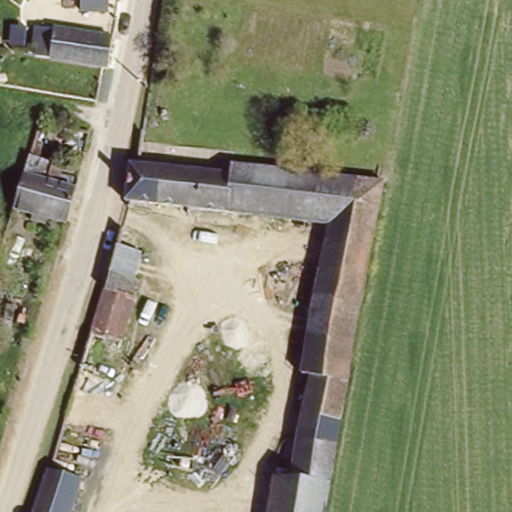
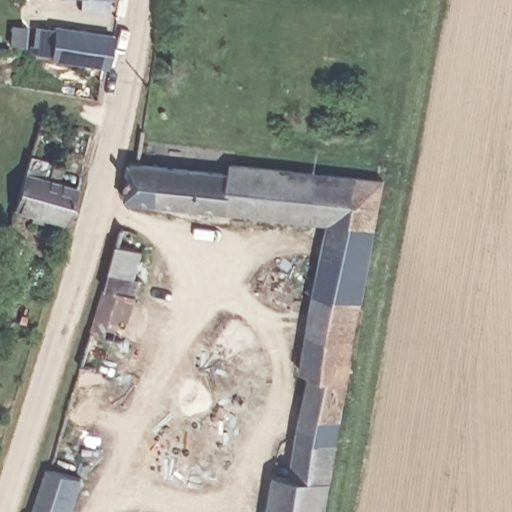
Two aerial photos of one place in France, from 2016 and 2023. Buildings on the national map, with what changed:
unchanged [(92,2),(92,0),(119,0),(119,3),(92,2)]
unchanged [(105,69),(101,69),(47,59),(34,57),(39,28),(52,30),(110,39),(105,69)]
unchanged [(116,159),(144,164),(147,137),(182,142),(227,149),(387,174),(328,512),(276,512),(288,439),(309,443),(321,374),(307,372),(332,232),(108,197),(116,159)]
unchanged [(24,216),(21,216),(22,214),(22,212),(25,198),(32,157),(53,160),(50,180),(77,184),(67,223),(53,220),(52,227),(36,224),(37,217),(24,216)]
unchanged [(142,245),(130,280),(105,277),(112,244),(142,245)]
unchanged [(99,291),(129,298),(120,337),(91,329),(99,291)]
unchanged [(42,466),(76,474),(68,512),(28,512),(42,466)]

